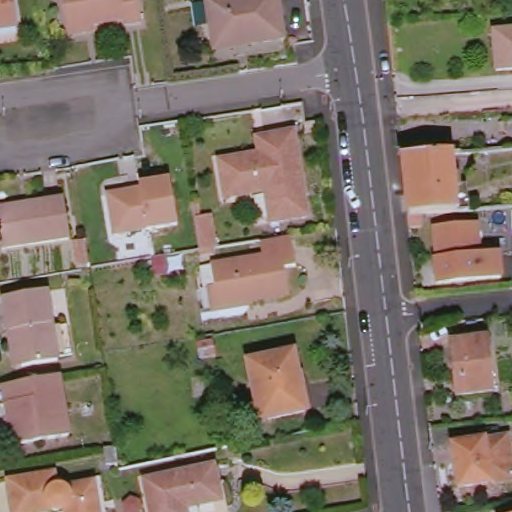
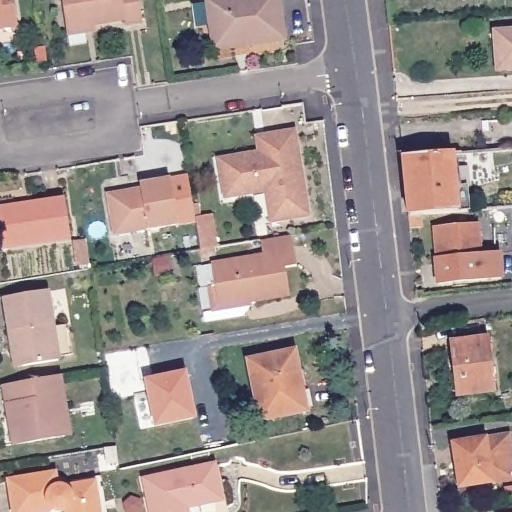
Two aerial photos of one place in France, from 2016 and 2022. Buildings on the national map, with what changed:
unchanged [(17,29),(0,31),(0,0),(13,0),(17,29)]
unchanged [(69,33),(68,26),(64,0),(140,0),(143,20),(127,22),(127,19),(96,22),(97,29),(69,33)]
unchanged [(213,39),(208,0),(281,0),(287,37),(252,42),(215,48),(213,39)]
unchanged [(512,25),(512,67),(497,68),(495,26),(512,25)]
unchanged [(222,183),(218,162),(259,155),(256,140),(263,138),(295,133),(309,217),(271,224),(265,193),(237,198),(225,200),(222,183)]
unchanged [(450,155),(455,210),(407,215),(402,159),(450,155)]
unchanged [(108,193),(132,190),(132,192),(142,190),(140,183),(170,178),(177,223),(115,232),(108,193)]
unchanged [(0,237),(0,206),(62,196),(68,235),(2,246),(0,237)]
unchanged [(194,216),(211,214),(217,245),(200,248),(194,216)]
unchanged [(437,280),(435,261),(437,261),(437,258),(435,230),(477,227),(480,255),(480,257),(500,256),(512,255),(512,265),(512,275),(501,276),(437,280)]
unchanged [(213,262),(265,254),(262,237),(292,232),(297,263),(286,265),(290,293),(252,301),(252,305),(214,311),(210,287),(217,286),(213,262)]
unchanged [(10,330),(3,297),(45,290),(57,358),(23,365),(17,366),(10,330)]
unchanged [(440,347),(499,340),(505,393),(447,401),(440,347)]
unchanged [(247,361),(293,351),(307,410),(260,420),(247,361)]
new [(184,371),(193,416),(155,425),(145,380),(184,371)]
unchanged [(3,383),(59,374),(68,434),(21,442),(13,443),(7,402),(3,383)]
unchanged [(489,436),(512,433),(512,478),(497,480),(489,436)]
unchanged [(497,480),(497,488),(458,492),(452,442),(489,436),(497,480)]
unchanged [(187,512),(151,512),(144,480),(207,466),(213,465),(221,498),(215,500),(185,506),(187,512)]
unchanged [(57,511),(52,509),(50,512),(15,512),(10,481),(57,472),(59,485),(62,485),(67,486),(95,482),(100,512),(65,512),(65,510),(57,511)]

